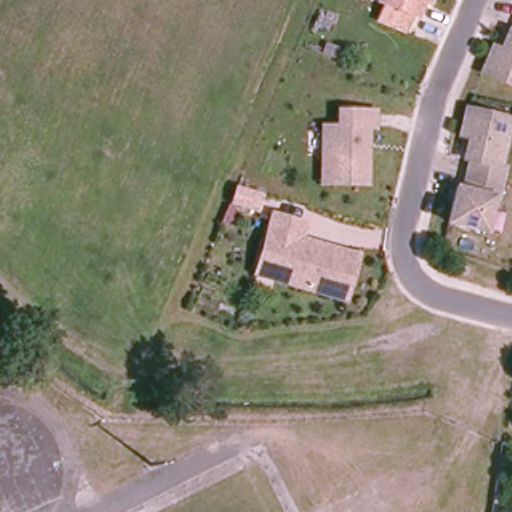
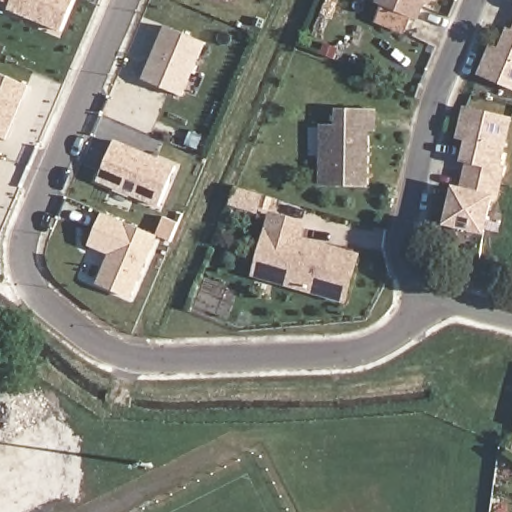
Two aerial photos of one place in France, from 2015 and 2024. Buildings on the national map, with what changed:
new [(16,0),(77,0),(64,30),(12,9),(16,0)]
unchanged [(380,2),(380,0),(432,0),(432,1),(426,4),(420,19),(380,2)]
new [(169,26),(207,42),(184,97),(146,80),(169,26)]
unchanged [(487,54),(493,56),(504,30),(510,32),(512,27),(512,87),(479,74),(487,54)]
new [(29,85),(6,139),(0,136),(0,72),(29,85)]
unchanged [(326,126),(335,126),(336,110),(372,110),(371,127),(364,127),(363,184),(325,183),(318,183),(319,125),(326,126)]
unchanged [(504,170),(500,185),(497,201),(492,200),(485,234),(447,225),(455,191),(461,192),(467,164),(463,162),(468,135),(460,133),(464,111),(509,121),(499,169),(504,170)]
new [(117,141),(178,167),(162,205),(101,180),(117,141)]
new [(265,195),(259,215),(229,206),(235,186),(265,195)]
new [(159,237),(132,300),(99,285),(112,255),(88,246),(104,213),(159,237)]
unchanged [(261,242),(268,215),(299,223),(296,239),(309,242),(316,244),(354,254),(343,298),(271,280),(253,275),(261,242)]

